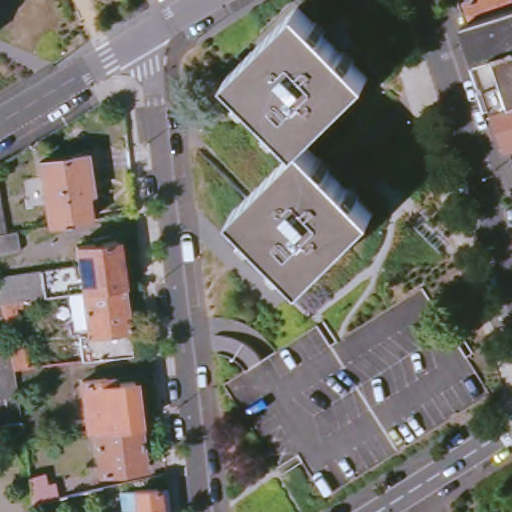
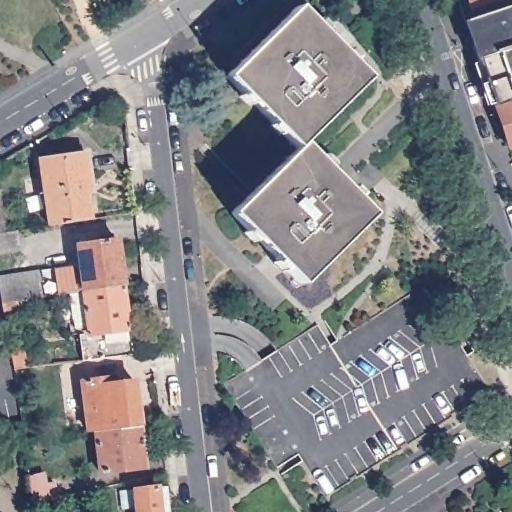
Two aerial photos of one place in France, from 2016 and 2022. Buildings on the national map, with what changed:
unchanged [(478,55),(464,16),(473,14),(512,0),(512,44),(478,55)]
unchanged [(468,0),(512,0),(473,14),(468,0)]
unchanged [(299,146),(230,73),(304,4),(373,75),(306,139),(374,212),(304,282),(233,210),(299,146)]
unchanged [(494,104),(478,55),(512,44),(512,98),(494,104)]
unchanged [(508,144),(494,104),(512,98),(512,143),(508,144)]
unchanged [(34,227),(48,225),(39,161),(82,154),(89,219),(60,223),(63,237),(36,241),(34,227)]
unchanged [(14,230),(18,252),(0,253),(0,202),(4,232),(14,230)]
unchanged [(116,239),(122,285),(82,290),(76,244),(116,239)]
unchanged [(1,301),(0,295),(0,276),(68,265),(71,292),(16,299),(27,367),(13,369),(6,329),(1,301)]
unchanged [(88,332),(82,290),(122,285),(131,354),(118,356),(81,360),(78,333),(88,332)]
unchanged [(87,429),(81,381),(114,377),(115,384),(134,381),(138,424),(93,429),(87,429)]
unchanged [(98,473),(93,429),(138,424),(144,467),(98,473)]
unchanged [(45,486),(55,484),(58,498),(31,504),(28,477),(43,475),(45,486)]
unchanged [(133,489),(156,487),(159,512),(136,512),(133,489)]

